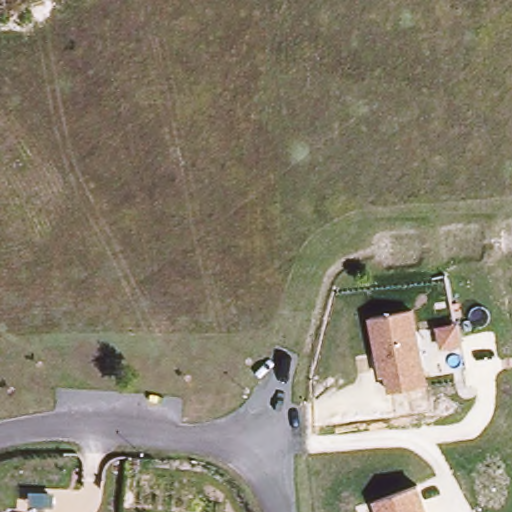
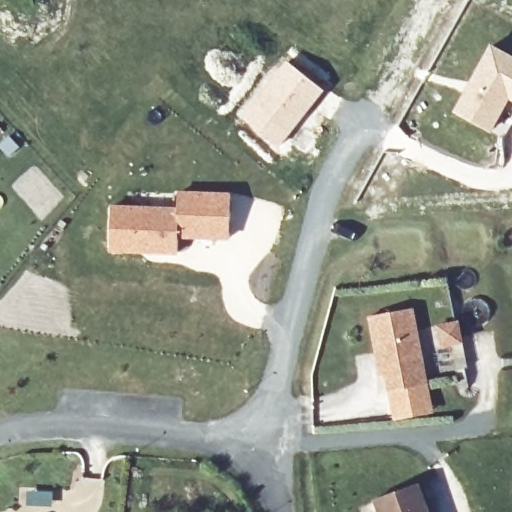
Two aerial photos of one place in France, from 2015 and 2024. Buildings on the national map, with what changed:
new [(490,42),(512,54),(512,101),(511,100),(492,132),(452,111),(490,42)]
new [(287,59),(325,90),(277,148),(237,115),(287,59)]
new [(176,191),(231,192),(229,240),(178,239),(176,206),(176,191)]
new [(111,204),(176,206),(178,239),(178,255),(109,252),(111,204)]
unchanged [(381,393),(367,317),(414,307),(428,383),(381,393)]
unchanged [(434,412),(394,419),(389,392),(428,383),(434,412)]
unchanged [(421,483),(431,512),(378,512),(374,499),(421,483)]

